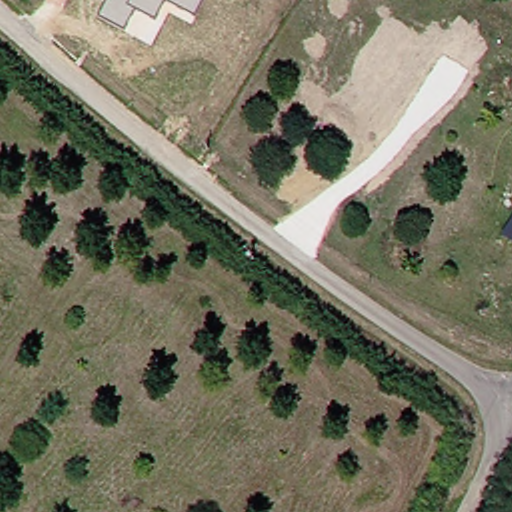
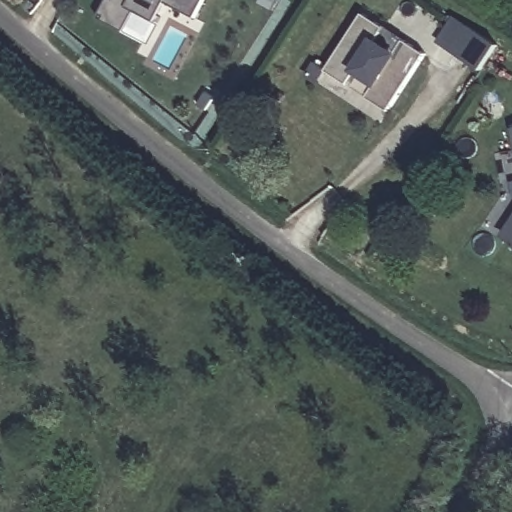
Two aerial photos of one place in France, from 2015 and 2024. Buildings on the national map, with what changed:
unchanged [(195,16),(167,1),(155,21),(137,11),(125,31),(99,17),(108,0),(116,0),(203,0),(195,16)]
new [(374,40),(393,51),(402,41),(423,55),(387,110),(367,97),(372,84),(354,73),(347,84),(326,71),(363,15),(384,28),(374,40)]
new [(451,16),(494,45),(477,69),(435,40),(451,16)]
new [(512,223),(512,243),(502,236),(512,223)]

